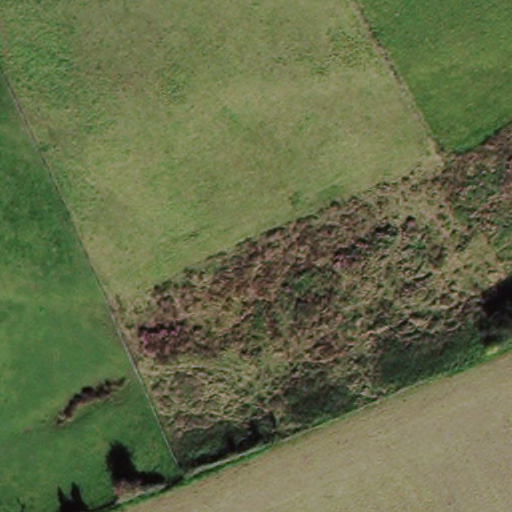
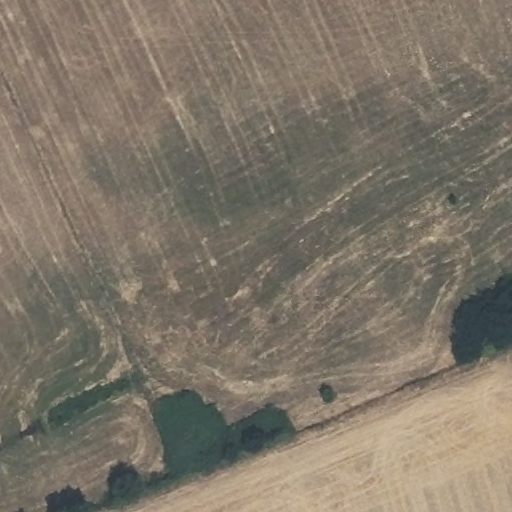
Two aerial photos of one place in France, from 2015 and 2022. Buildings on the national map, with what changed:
[]

